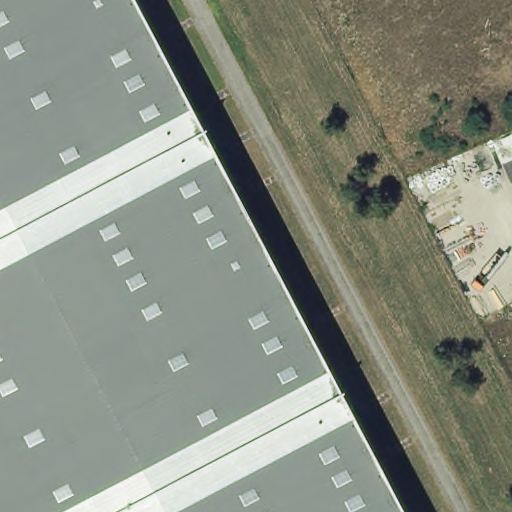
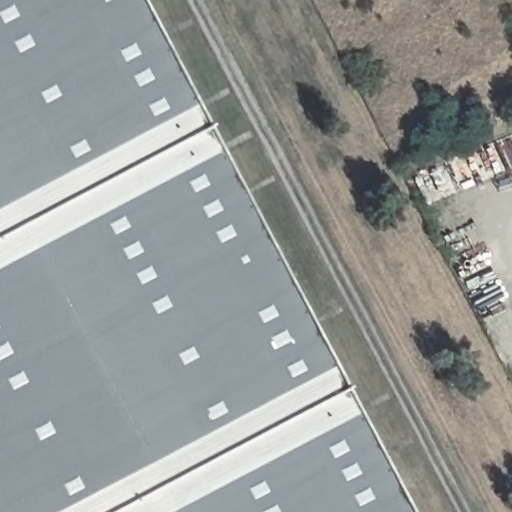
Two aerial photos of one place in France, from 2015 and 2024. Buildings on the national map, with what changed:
unchanged [(139,0),(406,512),(0,512),(0,0),(139,0)]

